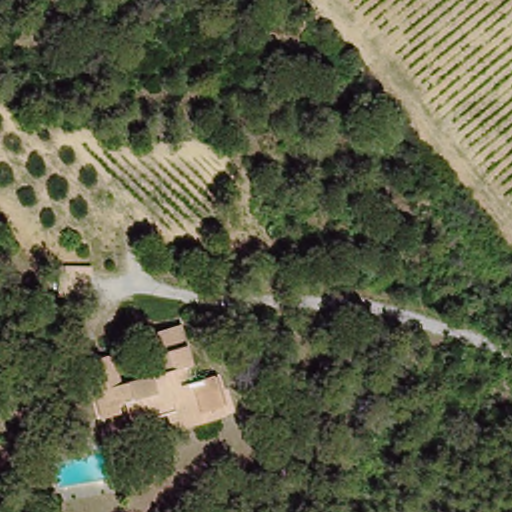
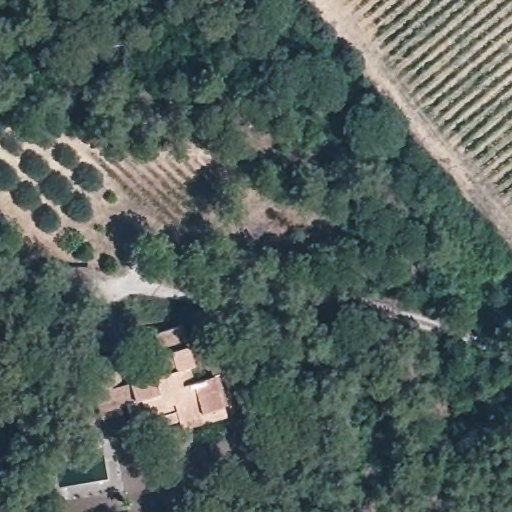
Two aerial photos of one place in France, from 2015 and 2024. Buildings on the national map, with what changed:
unchanged [(129,412),(104,418),(101,407),(88,361),(112,355),(119,382),(164,370),(156,337),(177,330),(192,382),(202,380),(211,418),(178,427),(176,420),(134,429),(129,412)]

